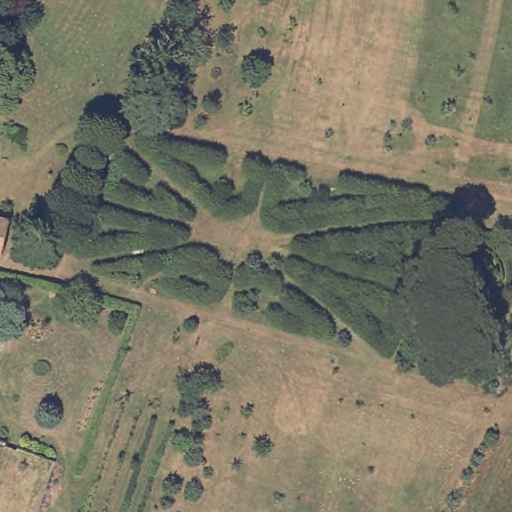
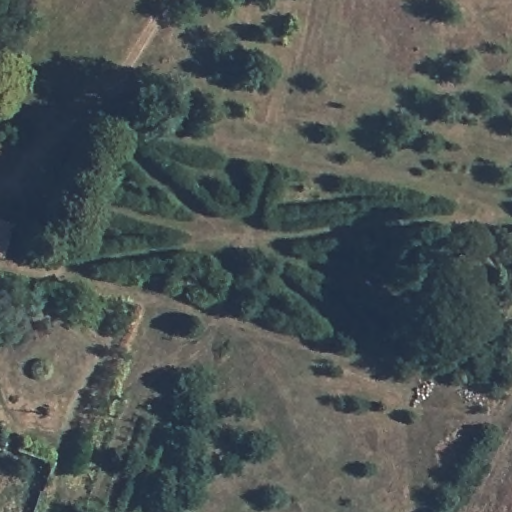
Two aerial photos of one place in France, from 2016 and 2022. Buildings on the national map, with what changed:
unchanged [(10,223),(1,254),(0,254),(0,220),(10,223)]

